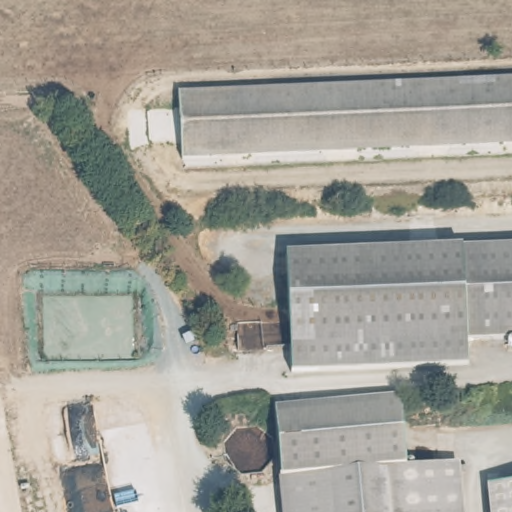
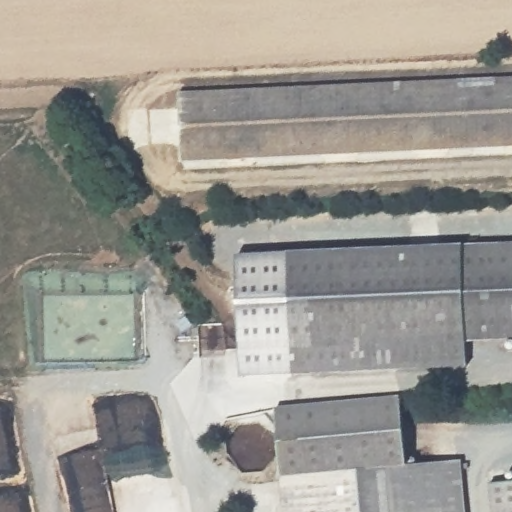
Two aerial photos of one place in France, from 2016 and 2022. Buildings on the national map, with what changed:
unchanged [(182,95),(512,79),(512,143),(185,157),(182,95)]
unchanged [(512,340),(463,342),(459,250),(512,248),(512,340)]
unchanged [(463,342),(465,367),(289,373),(285,256),(459,250),(463,342)]
new [(289,373),(242,375),(236,259),(285,256),(289,373)]
unchanged [(402,394),(407,459),(281,470),(276,406),(402,394)]
unchanged [(460,462),(463,508),(421,512),(286,512),(282,475),(460,462)]
unchanged [(512,512),(482,512),(480,484),(512,482),(512,512)]
unchanged [(463,508),(463,512),(421,512),(463,508)]

